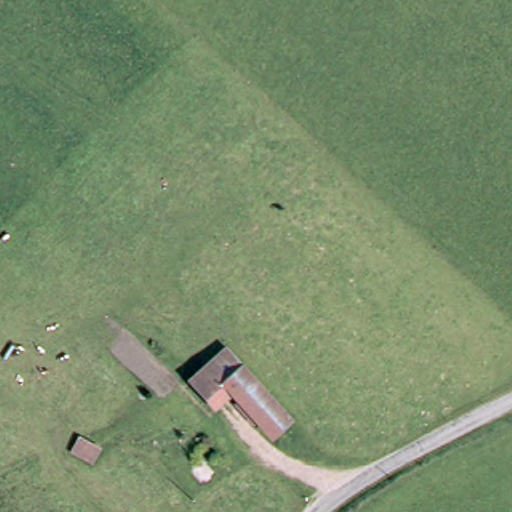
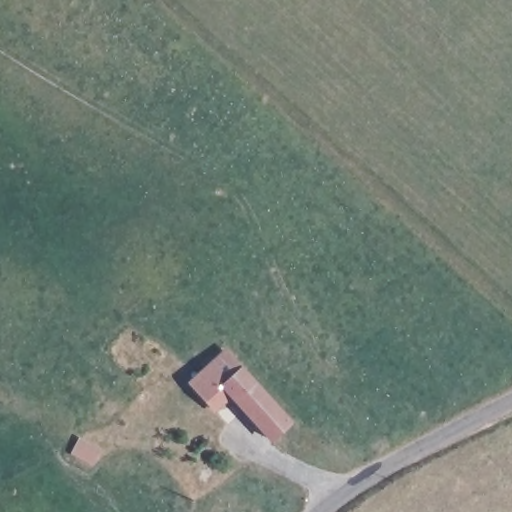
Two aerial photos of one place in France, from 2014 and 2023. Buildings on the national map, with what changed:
unchanged [(293,415),(271,437),(227,395),(207,413),(185,387),(202,371),(226,350),(293,415)]

